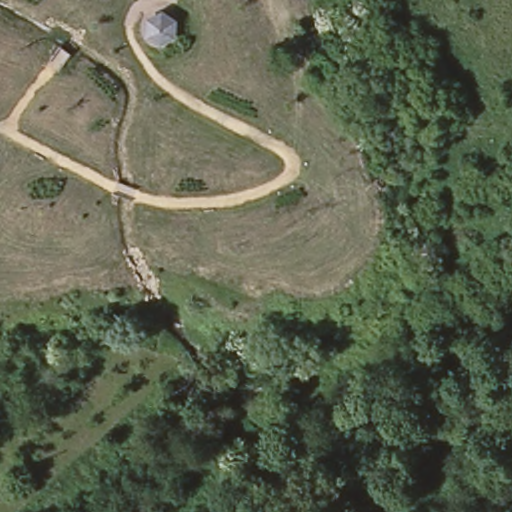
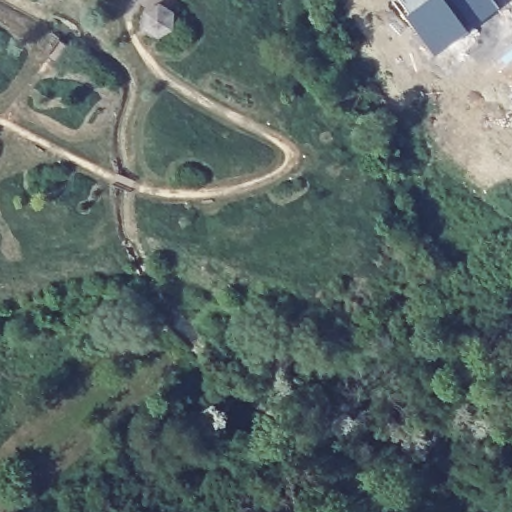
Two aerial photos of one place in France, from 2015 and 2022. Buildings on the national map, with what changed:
new [(411,15),(400,0),(431,0),(411,15)]
new [(498,6),(497,7),(496,5),(465,28),(466,30),(465,30),(464,29),(437,48),(439,51),(438,51),(411,15),(431,0),(493,0),(498,6)]

